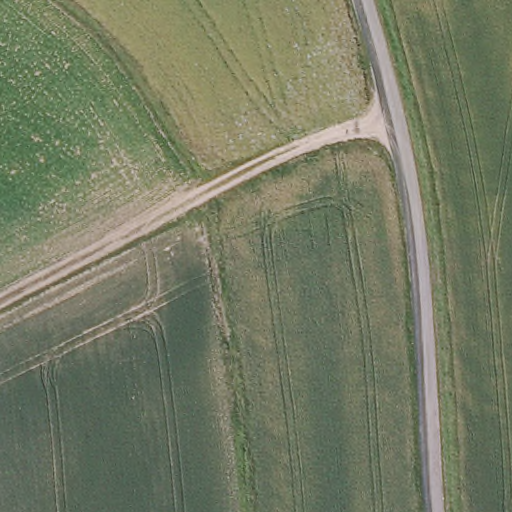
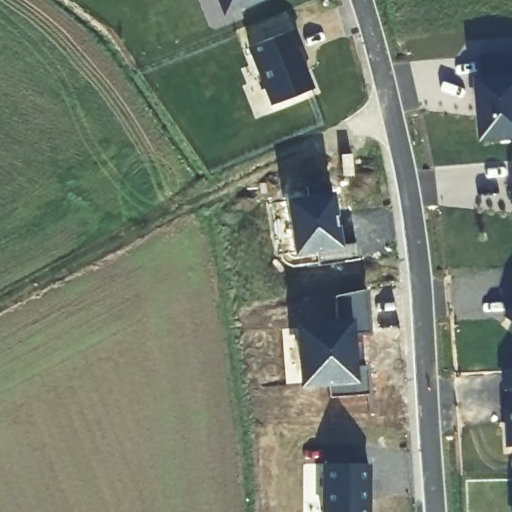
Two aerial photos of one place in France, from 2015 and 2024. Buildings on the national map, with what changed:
new [(216,0),(262,0),(222,16),(216,0)]
new [(247,47),(296,29),(303,46),(298,47),(315,87),(270,106),(247,47)]
new [(484,76),(482,59),(512,56),(512,142),(481,144),(475,77),(484,76)]
new [(317,252),(294,255),(285,199),(333,192),(337,216),(333,216),(335,227),(340,226),(341,242),(356,243),(357,259),(318,265),(317,252)]
new [(330,386),(300,387),(296,322),(335,321),(335,296),(368,289),(370,333),(354,334),(356,365),(368,366),(368,393),(330,396),(330,386)]
new [(512,309),(512,324),(505,317),(512,309)]
new [(506,421),(511,421),(509,390),(503,390),(502,370),(512,370),(512,447),(507,447),(506,421)]
new [(323,464),(371,465),(371,512),(323,512),(323,464)]
new [(511,493),(512,493),(512,512),(511,512),(511,493)]

